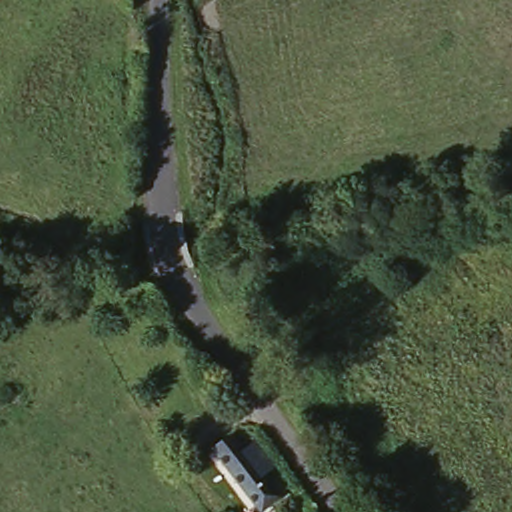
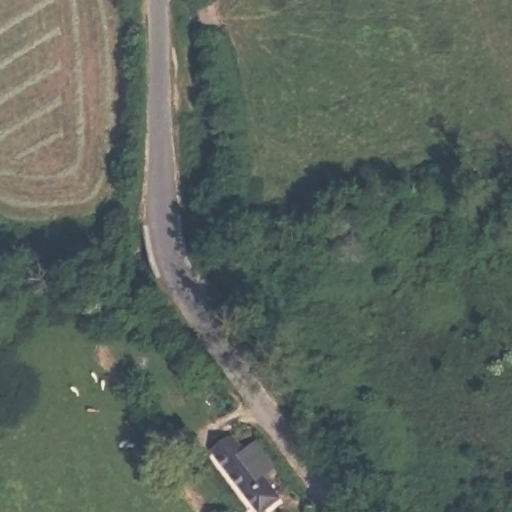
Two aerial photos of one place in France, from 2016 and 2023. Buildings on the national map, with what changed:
unchanged [(227,430),(239,446),(252,437),(268,462),(255,471),(270,494),(254,505),(210,442),(227,430)]

